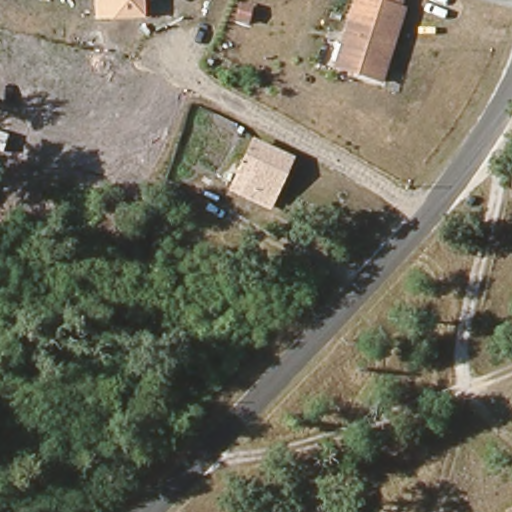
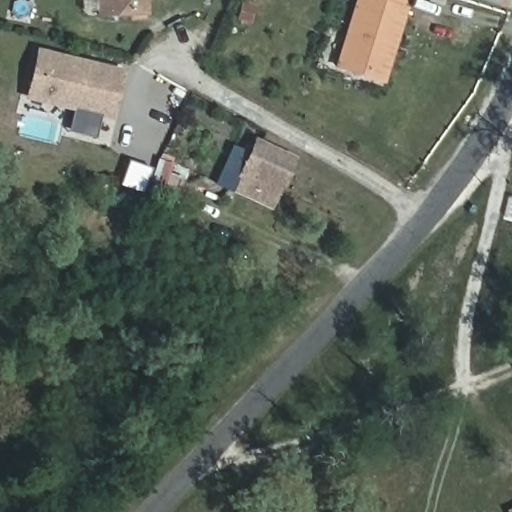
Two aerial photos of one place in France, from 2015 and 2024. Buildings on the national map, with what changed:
unchanged [(102,0),(145,0),(146,14),(107,15),(102,15),(102,0)]
unchanged [(404,0),(402,8),(407,9),(383,82),(338,67),(359,0),(404,0)]
demolished [(104,84),(91,84),(89,31),(97,30),(102,30),(104,84)]
new [(112,121),(24,100),(36,49),(124,71),(112,121)]
unchanged [(242,171),(252,145),(297,165),(275,214),(231,194),(220,189),(231,166),(242,171)]

